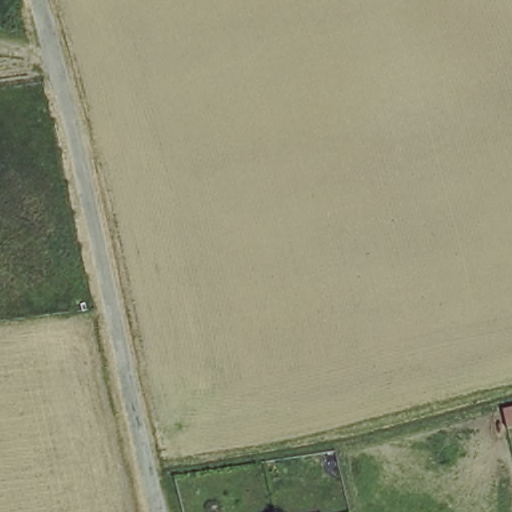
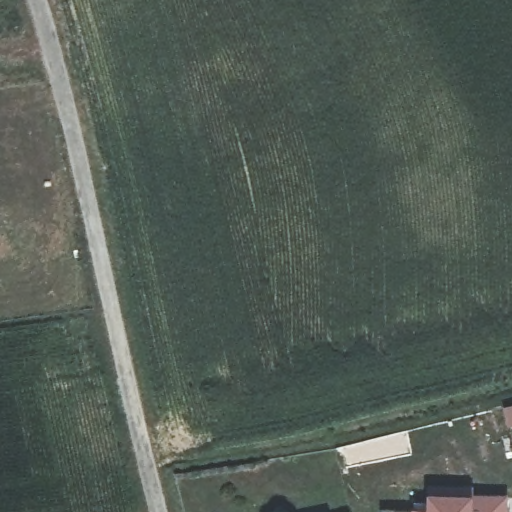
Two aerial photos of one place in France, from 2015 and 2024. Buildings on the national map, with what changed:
new [(412,509),(412,507),(426,507),(426,491),(509,494),(508,512),(411,512),(412,509)]
new [(381,509),(412,509),(411,512),(380,512),(381,509)]

